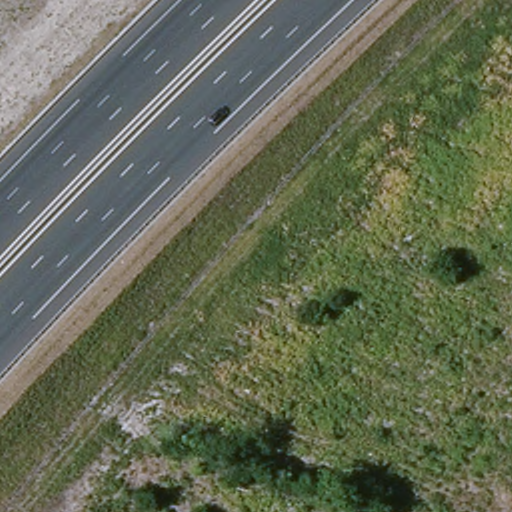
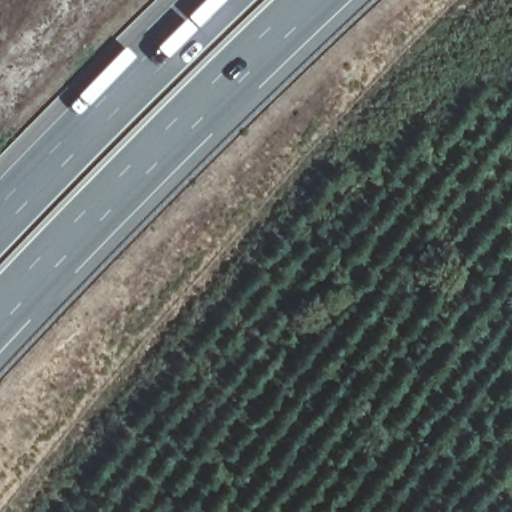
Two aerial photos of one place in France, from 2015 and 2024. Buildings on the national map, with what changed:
[]

